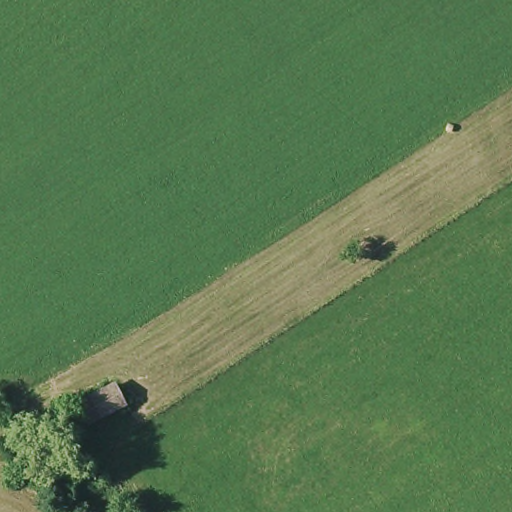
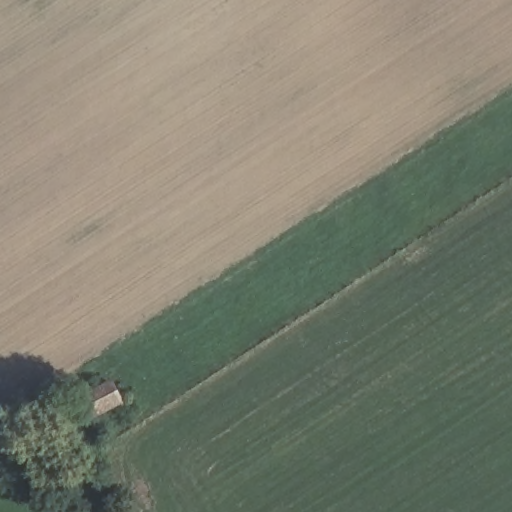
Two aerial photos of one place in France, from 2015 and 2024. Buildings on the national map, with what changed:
unchanged [(112,390),(120,409),(100,419),(89,424),(80,406),(91,400),(112,390)]

